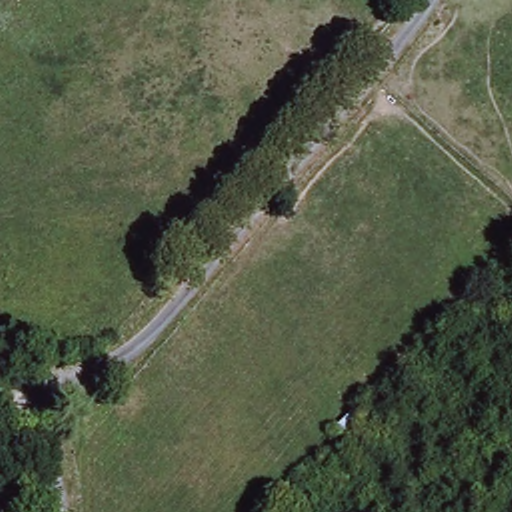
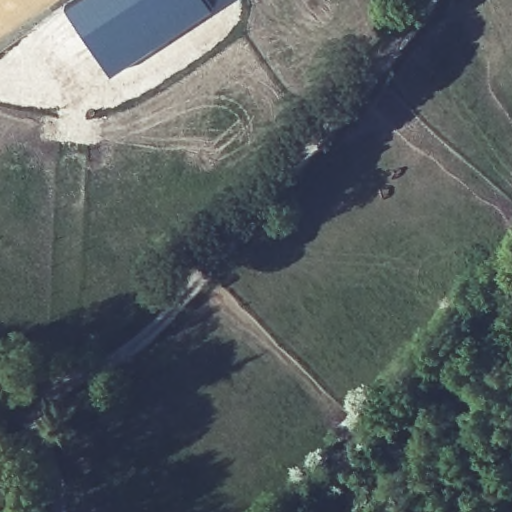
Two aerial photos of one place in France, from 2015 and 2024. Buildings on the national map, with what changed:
new [(70,0),(208,0),(212,6),(112,73),(64,4),(70,0)]

